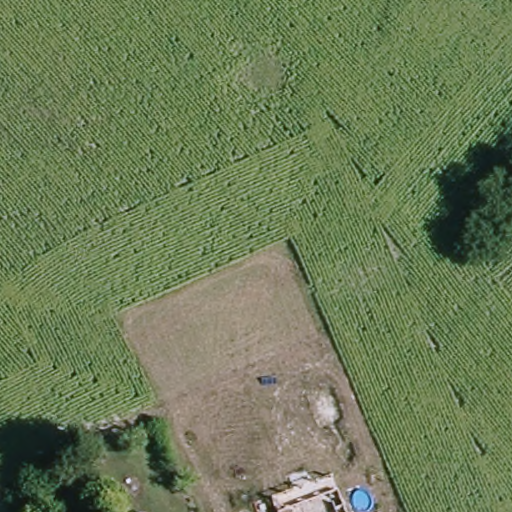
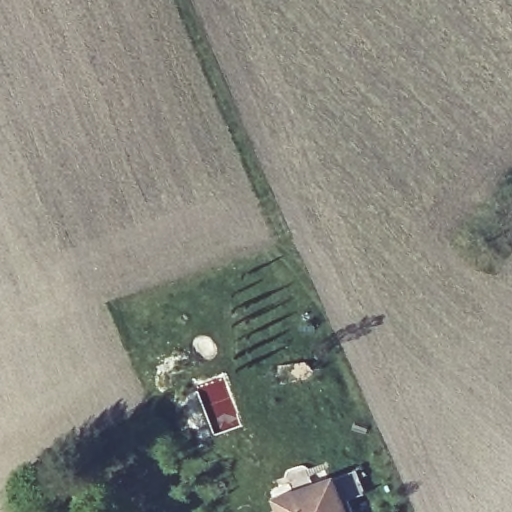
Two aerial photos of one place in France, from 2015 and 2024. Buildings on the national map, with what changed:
new [(346,512),(275,512),(270,499),(332,477),(346,512)]

